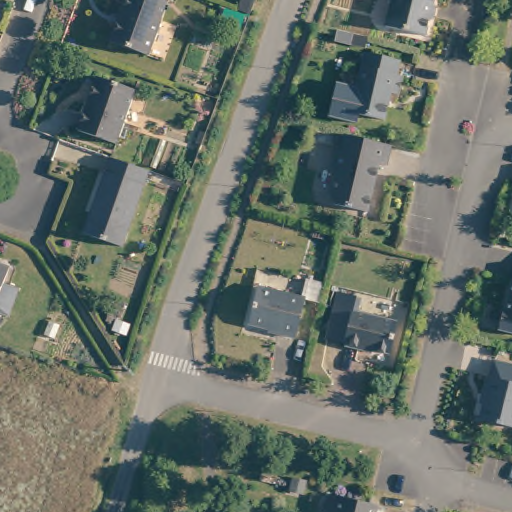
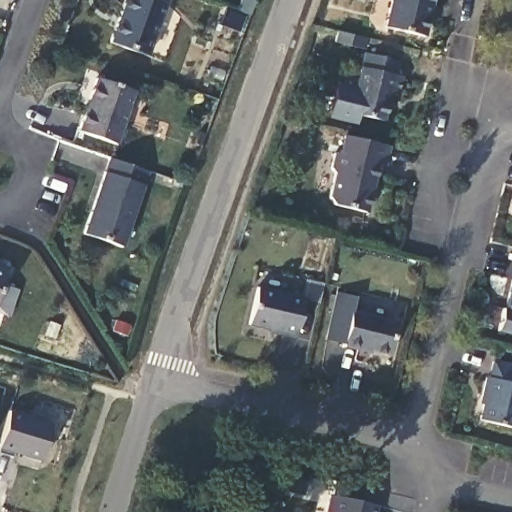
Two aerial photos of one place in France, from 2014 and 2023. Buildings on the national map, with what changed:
unchanged [(116,37),(128,0),(169,0),(153,49),(116,37)]
unchanged [(257,0),(254,10),(238,5),(240,0),(257,0)]
unchanged [(393,0),(411,0),(407,26),(388,23),(393,0)]
unchanged [(407,26),(411,0),(433,0),(427,31),(407,26)]
unchanged [(240,26),(223,21),(227,7),(244,12),(240,26)]
unchanged [(366,48),(400,56),(397,67),(402,73),(398,90),(391,88),(385,116),(352,109),(366,48)]
unchanged [(122,142),(84,130),(102,75),(140,88),(122,142)]
unchanged [(383,164),(375,161),(365,211),(333,203),(329,192),(333,174),(330,165),(332,151),(337,149),(341,131),(388,142),(383,164)]
unchanged [(128,243),(90,231),(115,154),(153,166),(128,243)]
unchanged [(0,306),(0,258),(15,263),(1,306),(0,306)]
unchanged [(300,334),(283,331),(281,326),(254,321),(262,284),(309,294),(300,334)]
unchanged [(391,350),(390,352),(363,346),(364,343),(346,338),(357,291),(376,296),(372,310),(417,321),(408,354),(391,350)]
unchanged [(508,334),(512,316),(512,334),(508,334)]
unchanged [(477,416),(482,391),(478,390),(482,375),(486,376),(490,357),(512,362),(512,424),(477,416)]
new [(51,423),(40,461),(12,453),(11,456),(0,452),(0,444),(11,411),(51,423)]
unchanged [(377,498),(374,512),(333,512),(334,508),(327,506),(332,486),(377,498)]

